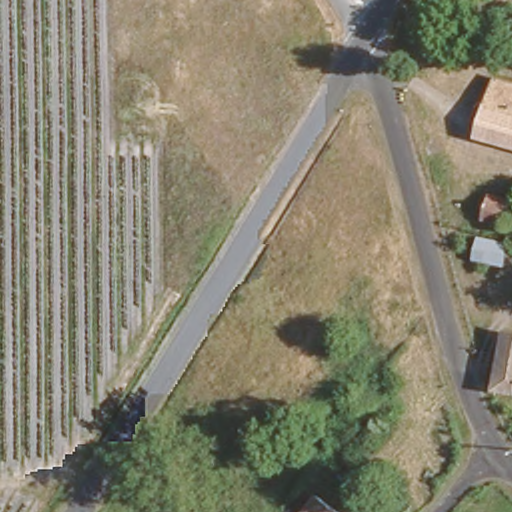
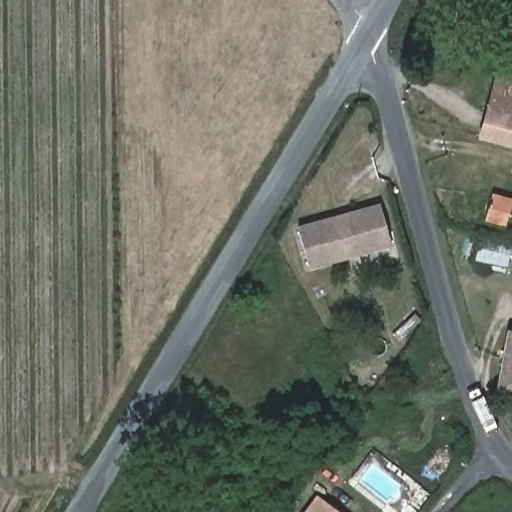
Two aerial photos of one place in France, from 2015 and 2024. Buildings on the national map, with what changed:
unchanged [(495,78),(512,83),(512,115),(487,108),(495,78)]
unchanged [(512,145),(480,136),(487,108),(512,115),(512,145)]
unchanged [(491,192),(512,198),(512,201),(505,224),(485,218),(491,192)]
new [(308,270),(296,225),(380,202),(392,246),(308,270)]
unchanged [(477,261),(482,236),(511,241),(507,267),(477,261)]
unchanged [(510,327),(512,327),(512,391),(500,388),(510,327)]
unchanged [(319,497),(339,512),(308,512),(319,497)]

